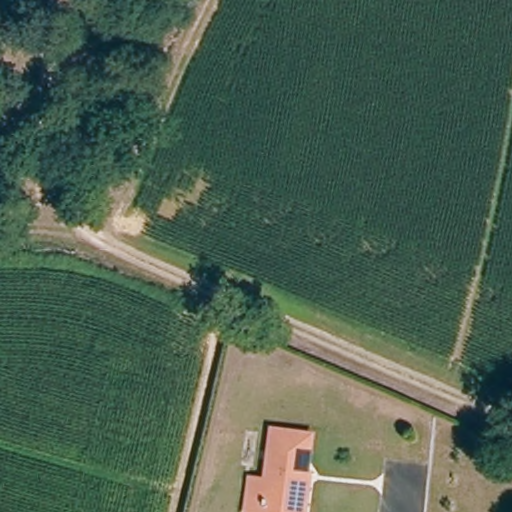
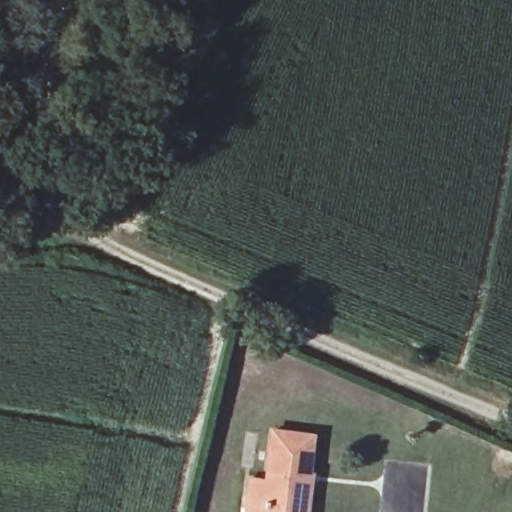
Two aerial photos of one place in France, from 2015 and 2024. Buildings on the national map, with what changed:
unchanged [(256,506),(259,477),(275,477),(278,431),(316,435),(310,503),(309,512),(272,512),(273,507),(256,506)]

